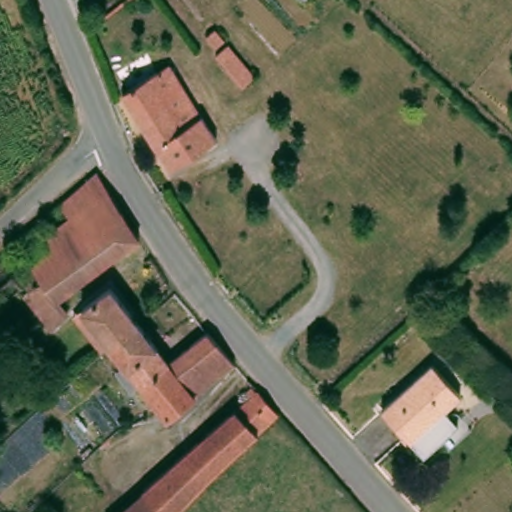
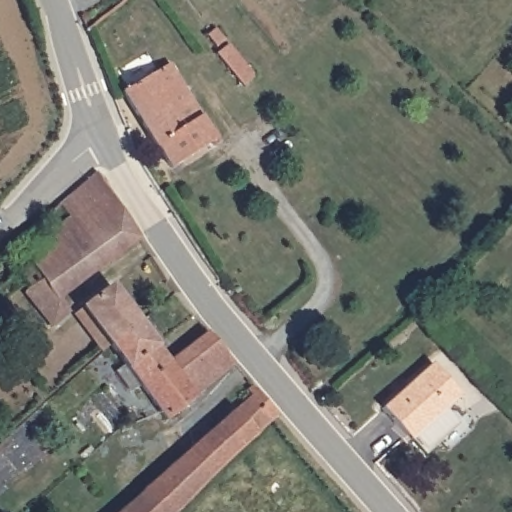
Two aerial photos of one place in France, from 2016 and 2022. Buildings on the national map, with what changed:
unchanged [(214,27),(224,39),(253,75),(240,85),(214,53),(221,47),(218,44),(214,46),(205,35),(214,27)]
unchanged [(143,126),(121,92),(168,62),(214,137),(213,139),(170,167),(157,145),(155,146),(143,126)]
unchanged [(26,232),(44,216),(50,211),(66,196),(83,181),(96,170),(111,193),(113,196),(137,235),(106,260),(104,262),(103,262),(99,265),(98,265),(86,275),(71,288),(62,295),(57,299),(49,287),(43,278),(42,276),(34,265),(33,266),(16,241),(26,232)]
unchanged [(258,226),(274,244),(227,288),(209,270),(258,226)]
unchanged [(34,265),(42,276),(43,278),(49,287),(57,299),(62,295),(71,288),(86,275),(98,265),(99,265),(103,262),(118,280),(111,285),(137,321),(126,331),(122,334),(109,345),(94,325),(78,303),(62,318),(51,328),(31,301),(24,292),(29,287),(21,276),(22,272),(33,266),(34,265)]
unchanged [(0,290),(0,285),(11,274),(21,285),(21,288),(8,300),(0,290)]
unchanged [(122,334),(126,331),(137,321),(167,360),(206,329),(233,362),(165,420),(157,409),(109,345),(122,334)]
unchanged [(433,363),(460,395),(408,440),(381,410),(433,363)]
unchanged [(185,453),(258,391),(277,414),(257,432),(213,473),(187,498),(174,512),(120,512),(148,485),(185,453)]

